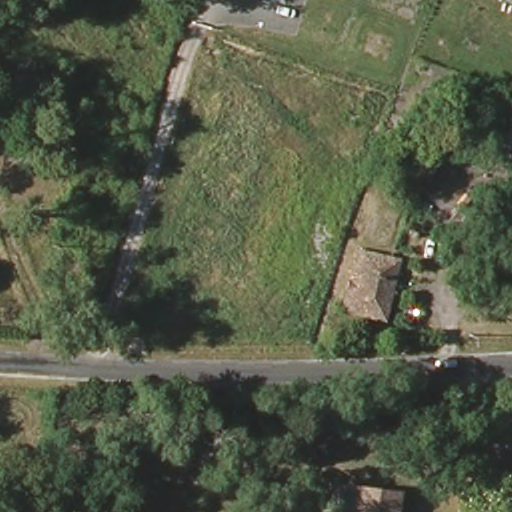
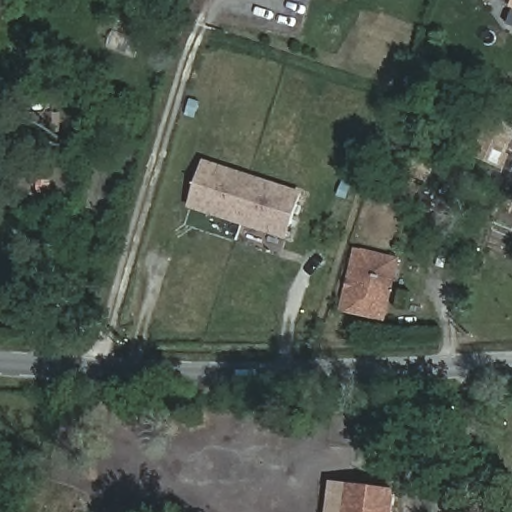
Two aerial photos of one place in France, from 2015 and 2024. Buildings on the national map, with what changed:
unchanged [(512,2),(512,10),(510,9),(512,2)]
unchanged [(508,136),(499,167),(474,159),(484,127),(508,136)]
new [(189,209),(204,159),(303,192),(288,240),(189,209)]
unchanged [(437,173),(428,202),(398,192),(411,165),(437,173)]
unchanged [(395,261),(375,322),(332,308),(357,252),(395,261)]
unchanged [(333,496),(336,487),(404,489),(401,512),(316,512),(317,497),(333,496)]

